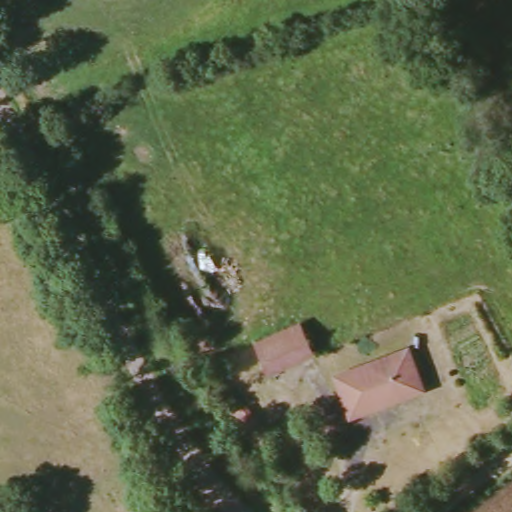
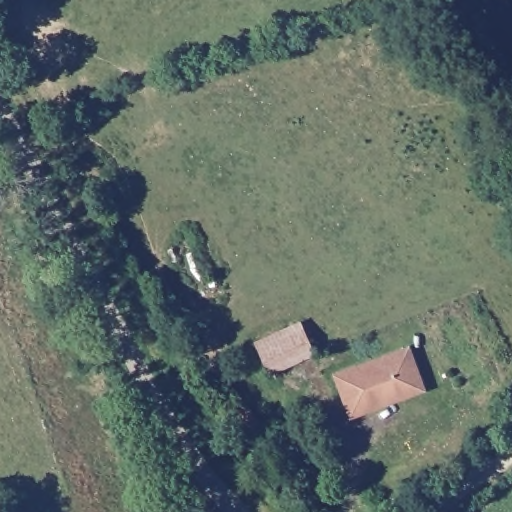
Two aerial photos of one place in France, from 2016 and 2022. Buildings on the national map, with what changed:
unchanged [(269,376),(254,342),(301,322),(316,356),(269,376)]
unchanged [(410,347),(426,392),(348,420),(332,375),(410,347)]

